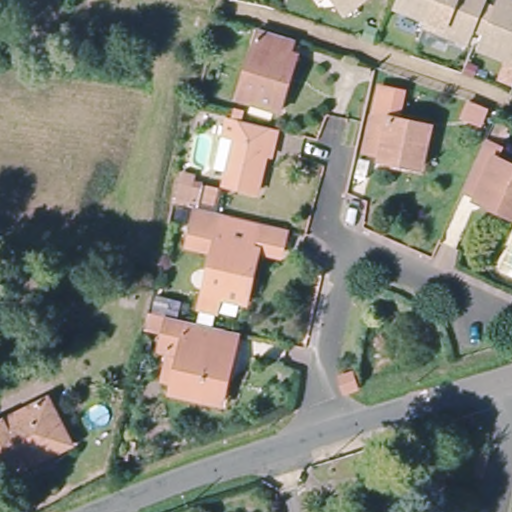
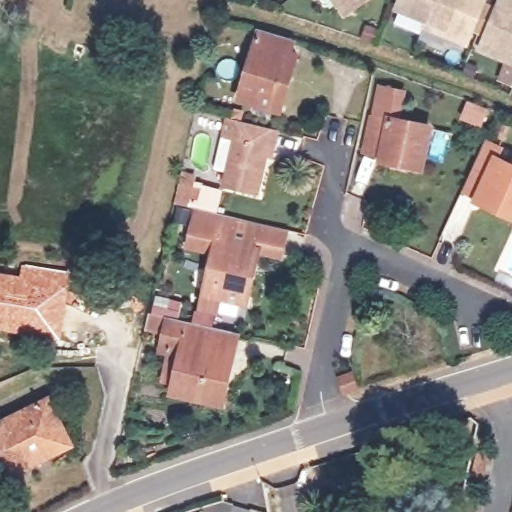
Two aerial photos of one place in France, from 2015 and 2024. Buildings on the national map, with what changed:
unchanged [(346,13),(335,0),(364,0),(346,13)]
unchanged [(431,14),(402,2),(404,0),(438,0),(431,14)]
unchanged [(429,20),(431,14),(438,0),(487,0),(472,38),(429,20)]
unchanged [(485,44),(502,0),(512,0),(512,55),(485,44)]
unchanged [(280,110),(240,101),(255,32),(265,34),(289,40),(286,55),(292,57),(296,58),(284,111),(280,110)]
unchanged [(415,170),(380,162),(381,155),(364,151),(372,116),(379,89),(403,95),(396,122),(426,130),(415,170)]
unchanged [(477,125),(470,141),(453,134),(460,118),(477,125)]
unchanged [(269,147),(265,146),(254,194),(222,187),(233,140),(221,138),(225,121),(272,131),(269,147)]
unchanged [(512,166),(512,215),(480,200),(481,198),(465,190),(486,143),(502,150),(498,160),(512,166)]
unchanged [(198,311),(201,296),(210,253),(185,247),(187,238),(193,211),(193,210),(218,216),(219,216),(218,219),(252,226),(252,224),(275,229),(270,254),(257,251),(245,305),(241,304),(216,299),(212,314),(198,311)]
new [(21,263),(72,271),(68,303),(59,341),(0,332),(0,271),(19,274),(21,263)]
unchanged [(230,352),(218,403),(170,392),(179,354),(159,350),(160,344),(166,316),(231,331),(226,351),(230,352)]
unchanged [(2,474),(0,469),(0,420),(45,399),(66,445),(2,474)]

